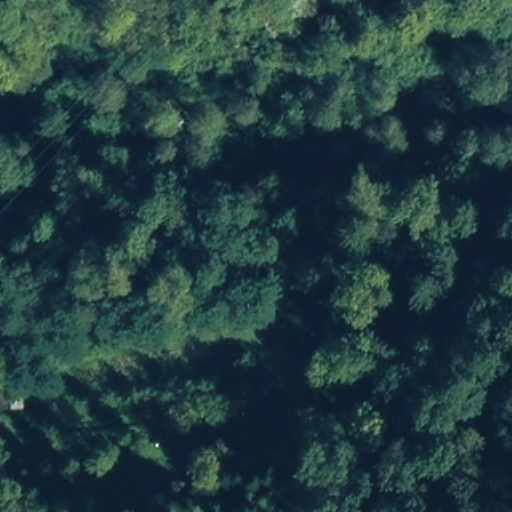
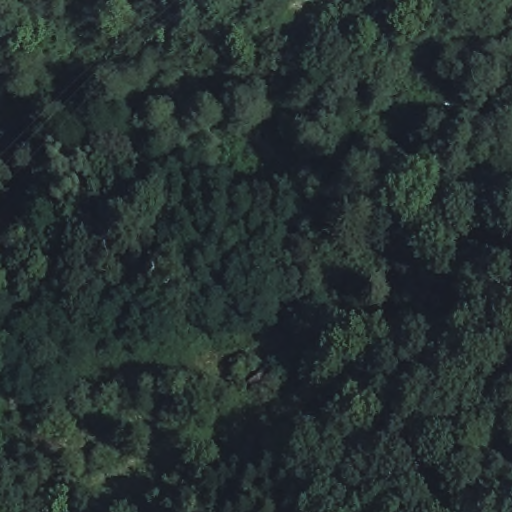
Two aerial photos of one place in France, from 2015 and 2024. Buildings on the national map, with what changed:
unchanged [(30,408),(0,411),(0,378),(25,375),(30,408)]

